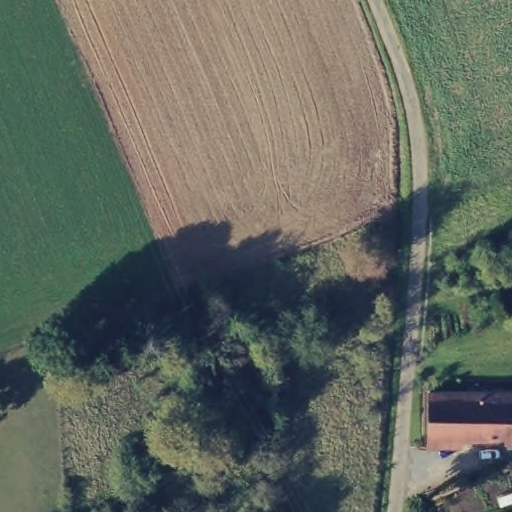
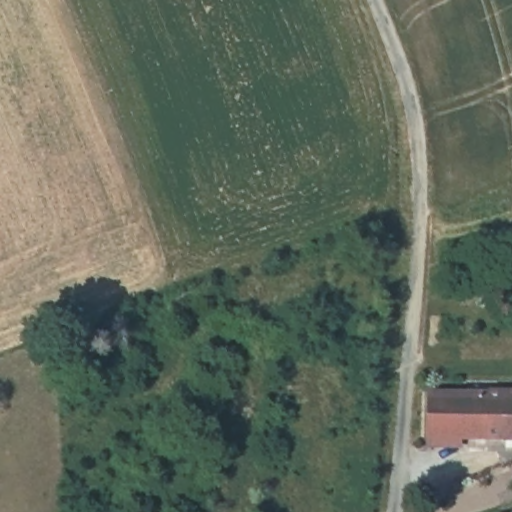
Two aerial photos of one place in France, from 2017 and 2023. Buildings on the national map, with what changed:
unchanged [(508,443),(508,434),(430,431),(431,386),(512,390),(512,443),(508,443)]

